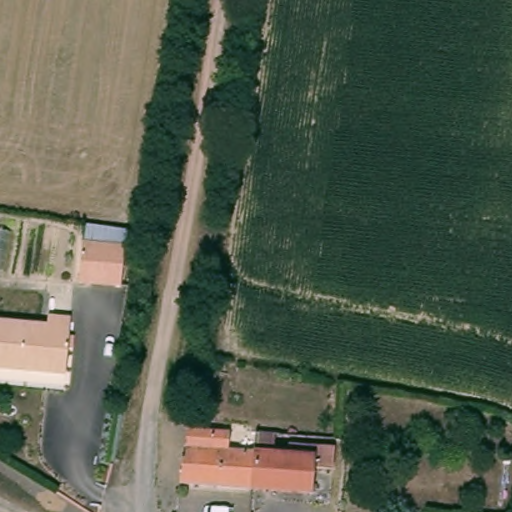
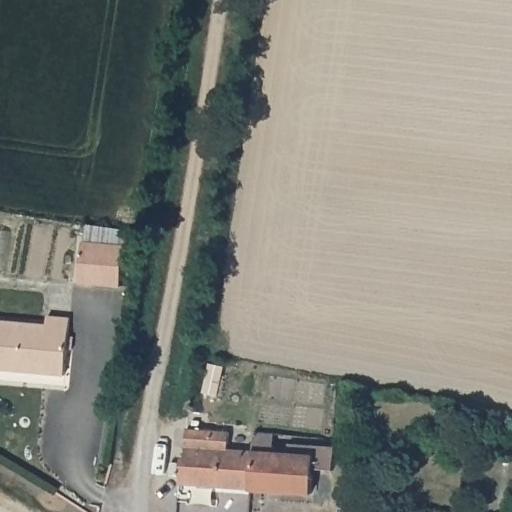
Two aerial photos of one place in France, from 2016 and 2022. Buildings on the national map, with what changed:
unchanged [(132,231),(127,274),(84,270),(88,226),(132,231)]
unchanged [(51,317),(78,321),(72,378),(0,370),(0,321),(50,328),(51,317)]
unchanged [(223,429),(222,447),(250,451),(247,488),(181,483),(186,425),(223,429)]
unchanged [(286,456),(289,438),(328,444),(325,464),(308,462),(305,477),(321,480),(318,496),(247,488),(250,451),(286,456)]

